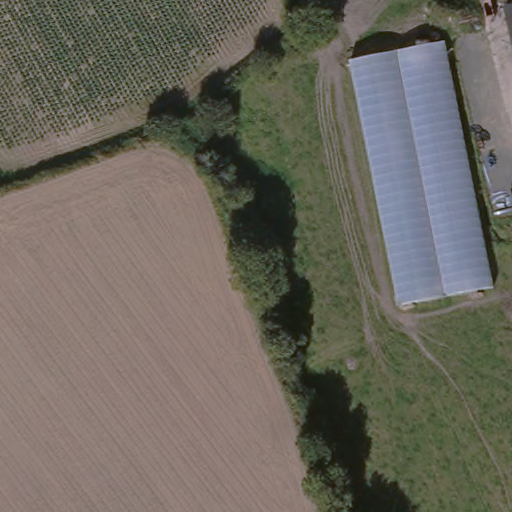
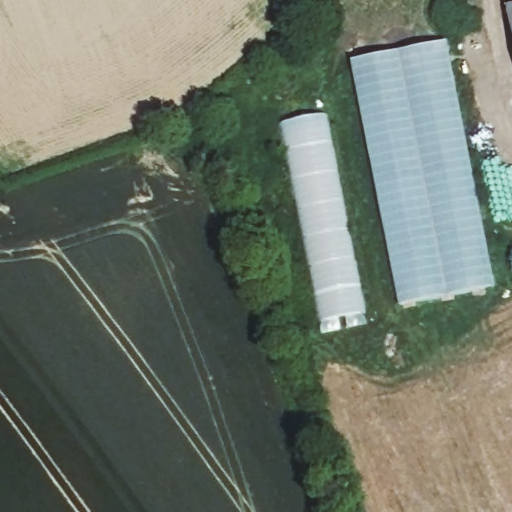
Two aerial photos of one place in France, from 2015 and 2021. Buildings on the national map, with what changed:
unchanged [(508,0),(501,1),(501,0),(508,0)]
unchanged [(504,12),(512,10),(512,45),(504,12)]
unchanged [(396,306),(349,61),(443,43),(492,288),(396,306)]
new [(281,122),(325,114),(363,313),(321,322),(281,122)]

